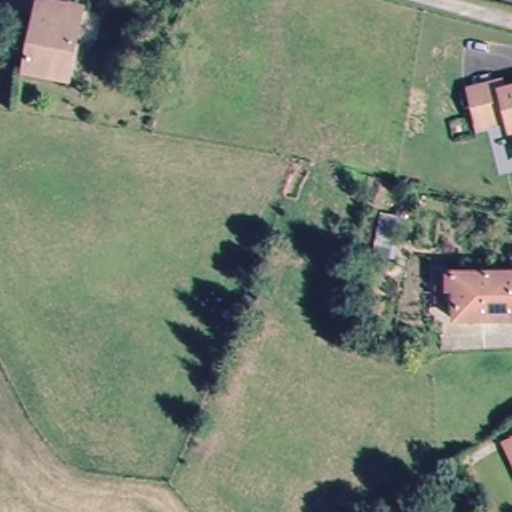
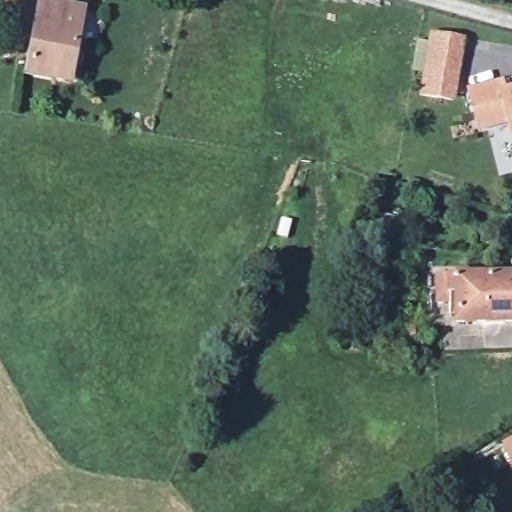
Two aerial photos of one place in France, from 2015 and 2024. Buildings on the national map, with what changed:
unchanged [(41,4),(82,11),(69,80),(28,73),(41,4)]
new [(429,35),(459,39),(451,99),(421,95),(429,35)]
unchanged [(475,96),(505,89),(507,98),(512,97),(512,123),(483,130),(475,96)]
unchanged [(402,218),(396,247),(390,245),(385,282),(373,281),(374,243),(379,217),(402,218)]
unchanged [(451,292),(433,292),(433,273),(451,273),(512,272),(512,316),(451,317),(451,292)]
unchanged [(512,456),(505,440),(512,437),(512,456)]

